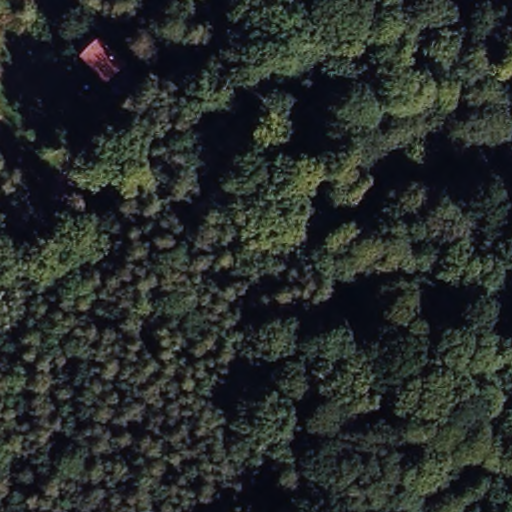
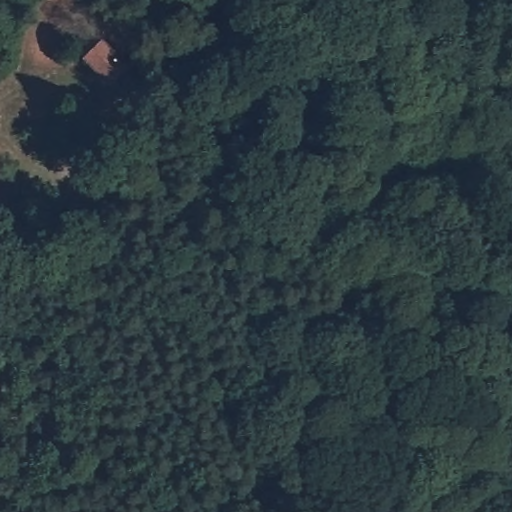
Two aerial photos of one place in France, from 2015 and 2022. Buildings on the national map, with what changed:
unchanged [(75,62),(105,39),(129,68),(105,92),(75,62)]

